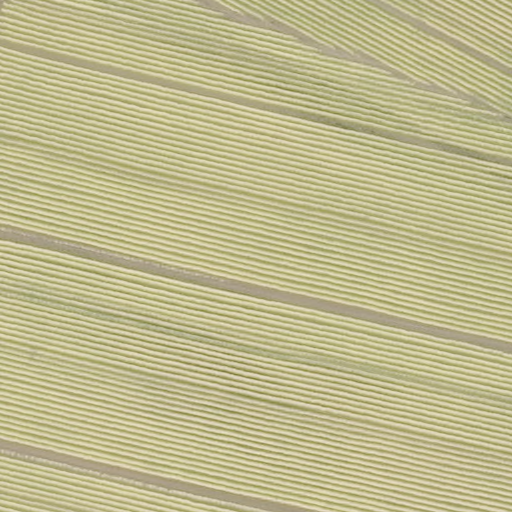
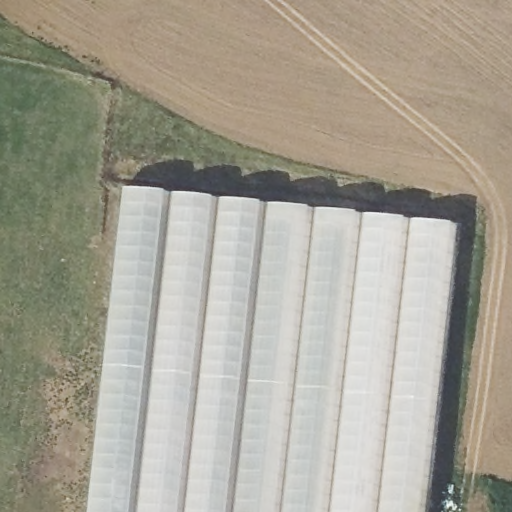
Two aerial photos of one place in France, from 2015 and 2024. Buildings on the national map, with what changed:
new [(456,227),(427,512),(88,512),(123,191),(456,227)]

